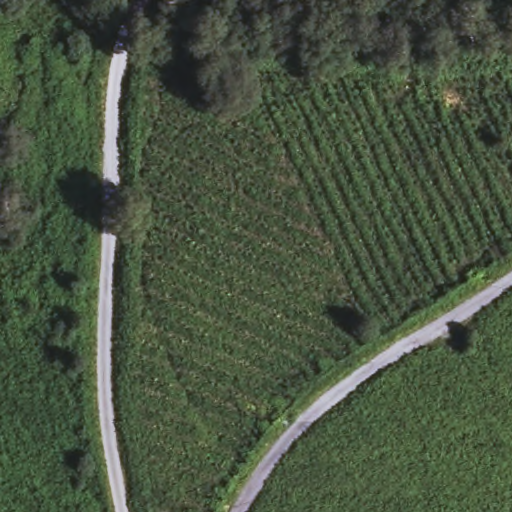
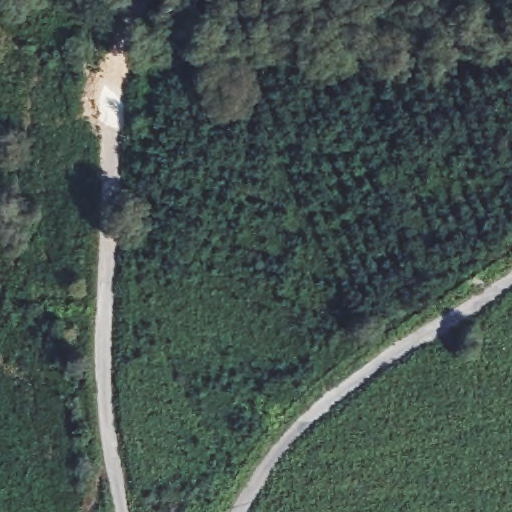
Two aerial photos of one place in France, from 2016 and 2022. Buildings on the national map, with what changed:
[]

